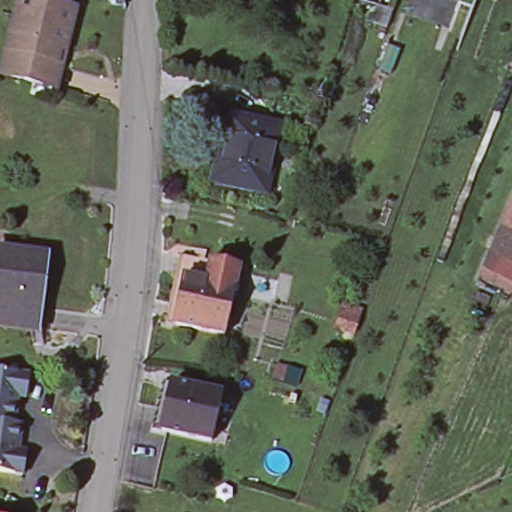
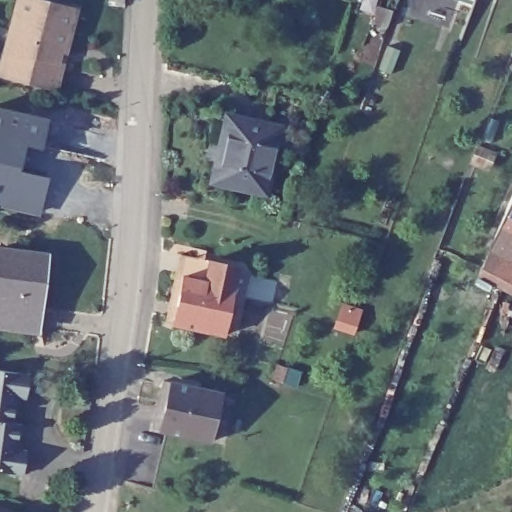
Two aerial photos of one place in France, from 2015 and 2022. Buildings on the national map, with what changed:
unchanged [(4,73),(21,0),(32,0),(76,10),(66,50),(63,62),(56,87),(4,73)]
unchanged [(124,0),(124,6),(112,4),(112,0),(124,0)]
unchanged [(379,6),(393,11),(387,28),(373,24),(379,6)]
unchanged [(387,46),(401,51),(392,75),(379,70),(387,46)]
unchanged [(233,112),(281,124),(265,189),(212,176),(217,154),(223,155),(233,112)]
new [(47,123),(41,147),(25,145),(19,175),(48,180),(41,215),(4,207),(8,185),(0,184),(0,113),(47,123)]
demolished [(490,159),(504,123),(512,126),(512,166),(490,159)]
unchanged [(491,249),(502,223),(512,198),(512,258),(491,249)]
unchanged [(512,258),(512,296),(477,280),(491,249),(512,258)]
unchanged [(42,259),(33,332),(0,329),(0,254),(42,259)]
unchanged [(180,257),(238,270),(238,271),(234,287),(176,275),(179,258),(180,257)]
unchanged [(176,275),(234,287),(224,337),(165,325),(176,275)]
unchanged [(343,311),(361,317),(355,335),(337,328),(343,311)]
unchanged [(31,370),(28,391),(20,391),(17,417),(25,418),(22,445),(29,445),(26,468),(0,466),(0,366),(31,370)]
unchanged [(163,381),(221,394),(209,444),(152,430),(163,381)]

